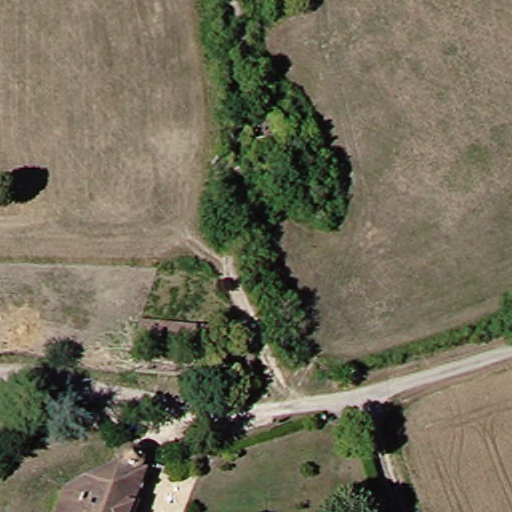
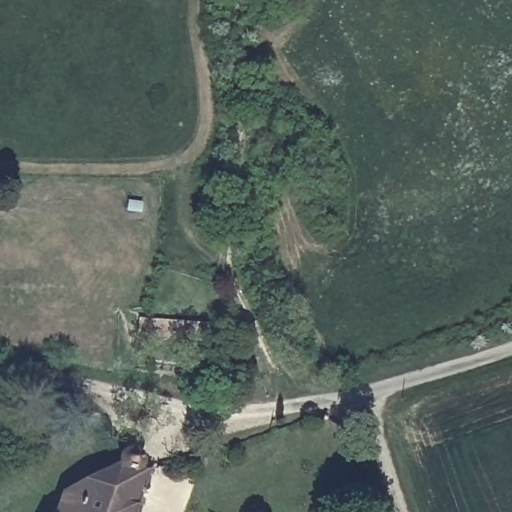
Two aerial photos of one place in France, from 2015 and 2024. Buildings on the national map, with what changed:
unchanged [(192,348),(131,342),(132,319),(191,326),(192,348)]
unchanged [(106,466),(112,458),(124,453),(132,458),(132,466),(142,469),(125,512),(41,512),(47,499),(52,501),(56,490),(101,466),(106,466)]

